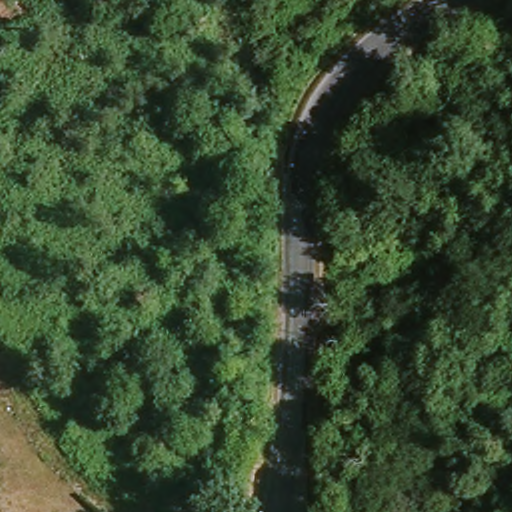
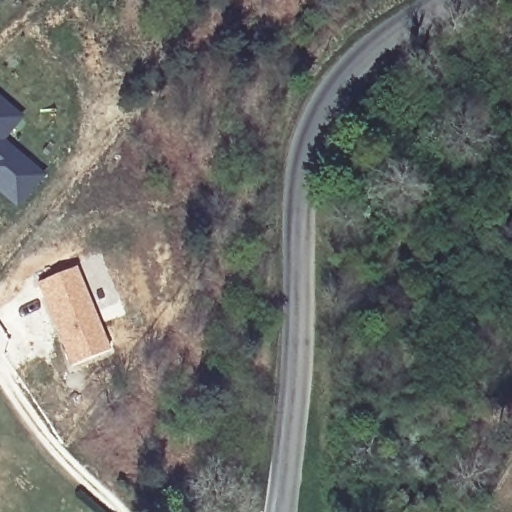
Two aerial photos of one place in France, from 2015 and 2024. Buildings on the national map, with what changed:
new [(7,134),(1,141),(43,177),(17,207),(0,192),(0,128),(7,134)]
new [(77,265),(112,349),(70,366),(36,282),(77,265)]

